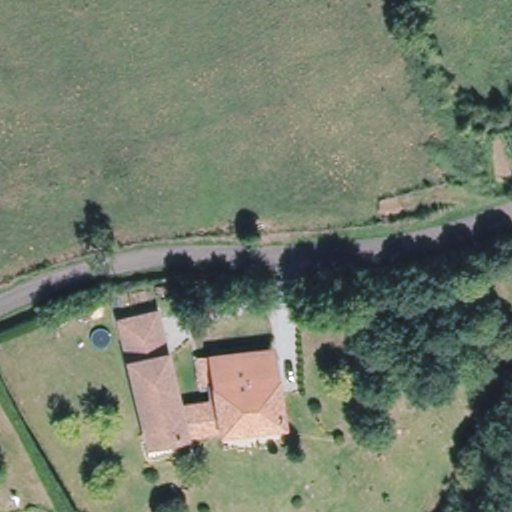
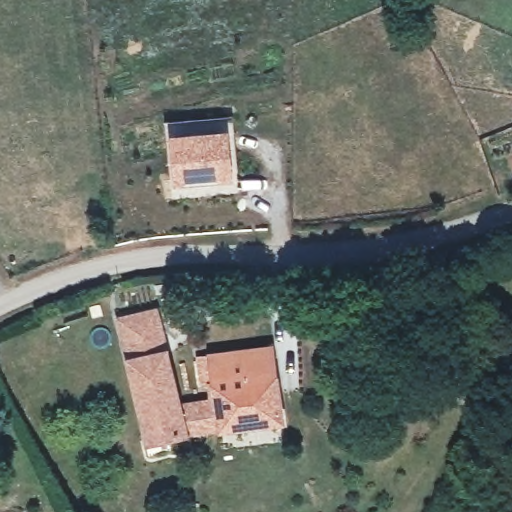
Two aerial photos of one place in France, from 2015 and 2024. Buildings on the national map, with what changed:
new [(170,134),(230,129),(234,182),(174,185),(170,134)]
unchanged [(124,313),(157,304),(182,399),(222,394),(214,345),(274,337),(284,412),(156,432),(124,313)]

